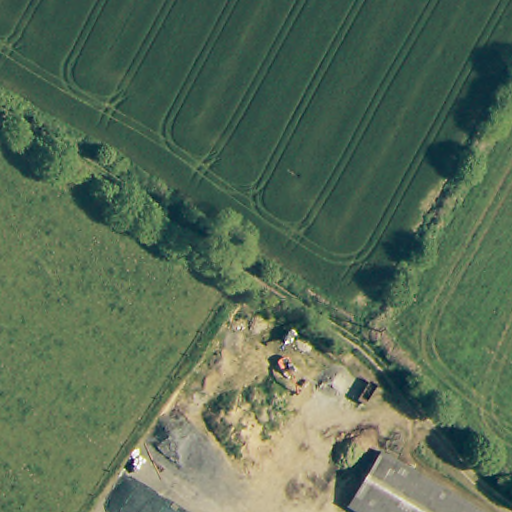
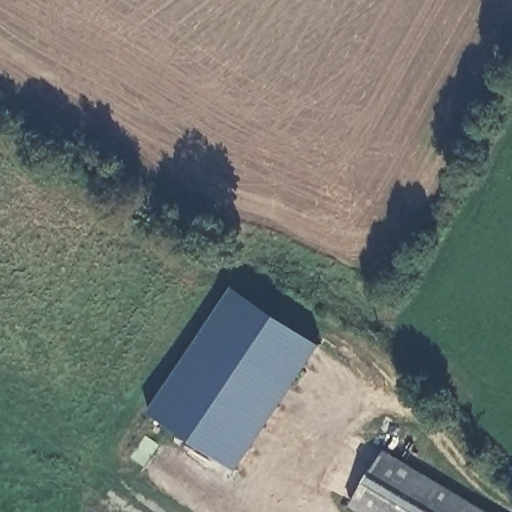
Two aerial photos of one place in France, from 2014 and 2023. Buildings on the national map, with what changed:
new [(237,470),(149,411),(232,286),(320,345),(237,470)]
unchanged [(481,512),(367,512),(350,501),(383,451),(481,512)]

